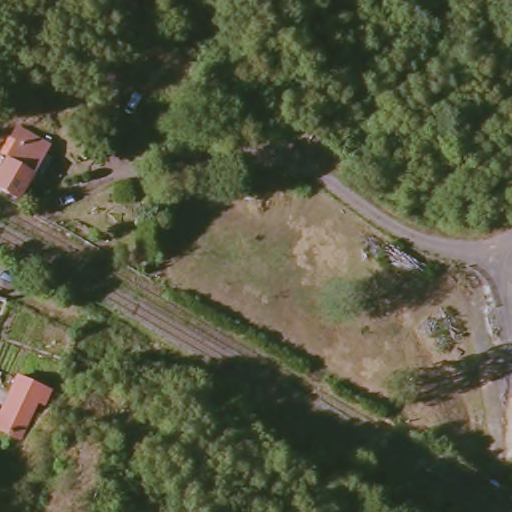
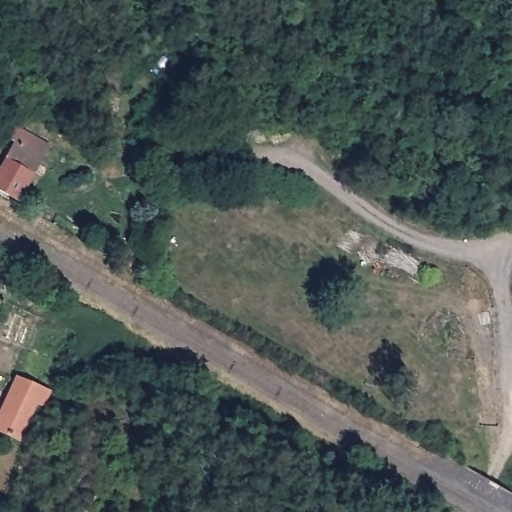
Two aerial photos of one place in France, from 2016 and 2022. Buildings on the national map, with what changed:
unchanged [(0,190),(0,162),(14,136),(39,151),(23,179),(13,197),(0,190)]
unchanged [(0,417),(15,375),(39,385),(46,389),(39,406),(32,403),(16,441),(0,434),(0,417)]

